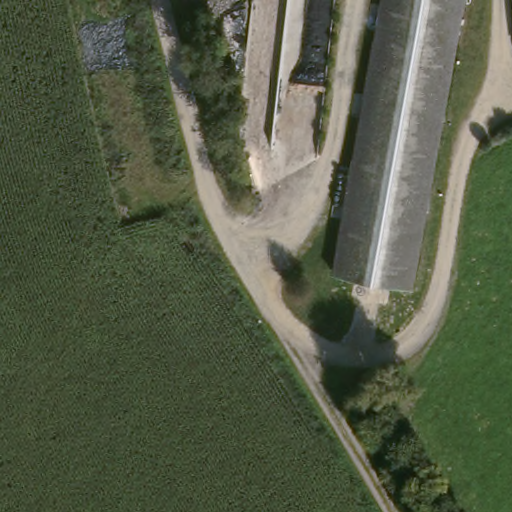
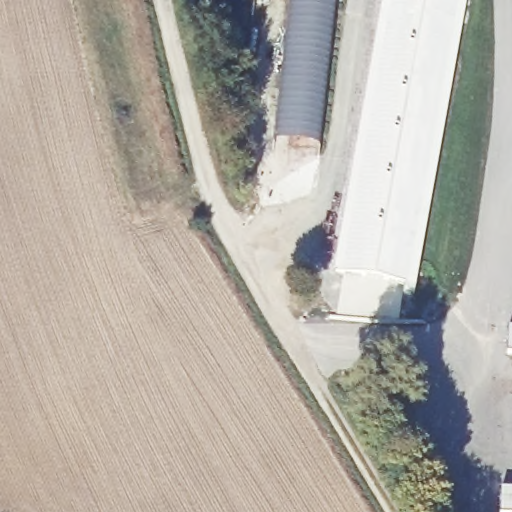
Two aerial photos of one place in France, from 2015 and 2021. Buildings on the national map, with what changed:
new [(276,142),(292,0),(334,0),(318,145),(276,142)]
unchanged [(375,0),(460,0),(450,72),(421,289),(339,279),(375,0)]
new [(512,352),(508,351),(509,323),(512,323),(512,352)]
new [(502,486),(512,487),(512,512),(500,512),(502,486)]

